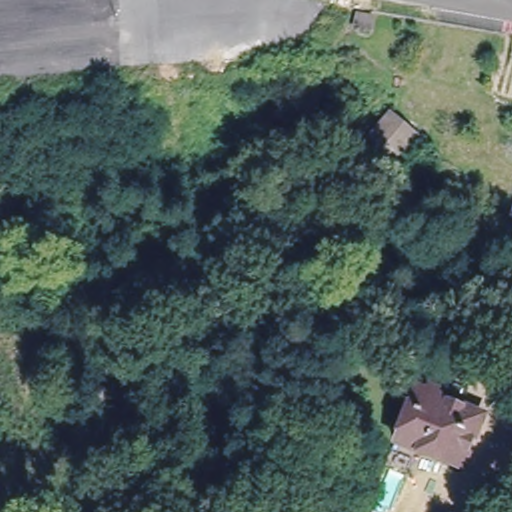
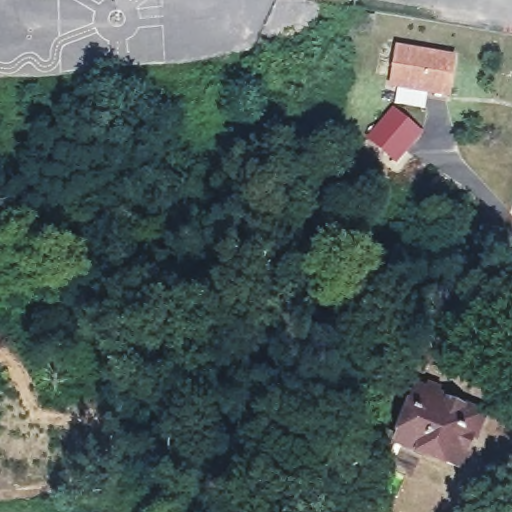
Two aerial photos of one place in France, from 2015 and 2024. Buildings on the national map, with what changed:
demolished [(362,17),(373,18),(370,33),(360,31),(362,17)]
new [(394,44),(455,54),(449,99),(387,88),(394,44)]
unchanged [(393,108),(419,131),(400,154),(373,131),(393,108)]
unchanged [(422,387),(488,414),(471,453),(464,451),(459,462),(401,439),(422,387)]

